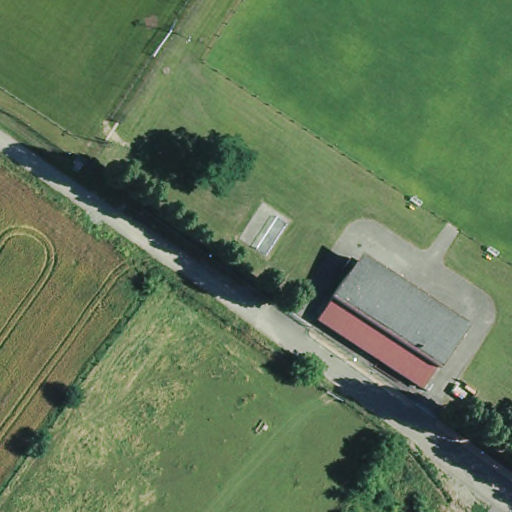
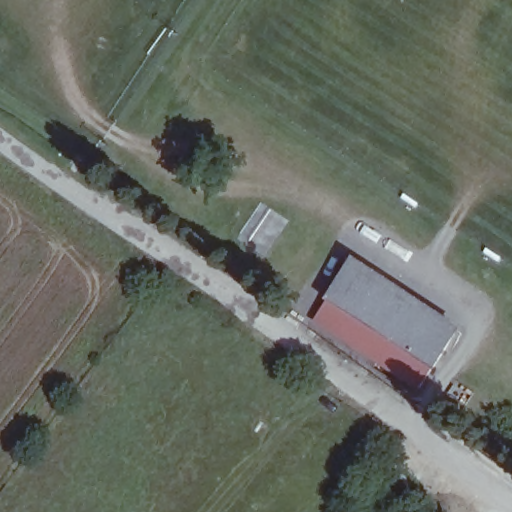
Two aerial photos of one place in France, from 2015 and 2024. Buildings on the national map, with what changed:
unchanged [(355,263),(461,331),(424,389),(318,322),(355,263)]

